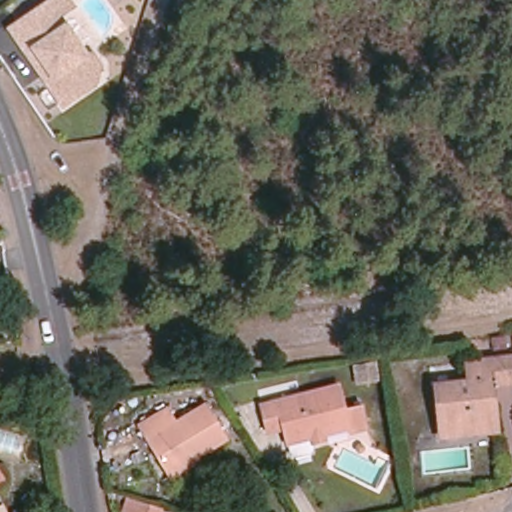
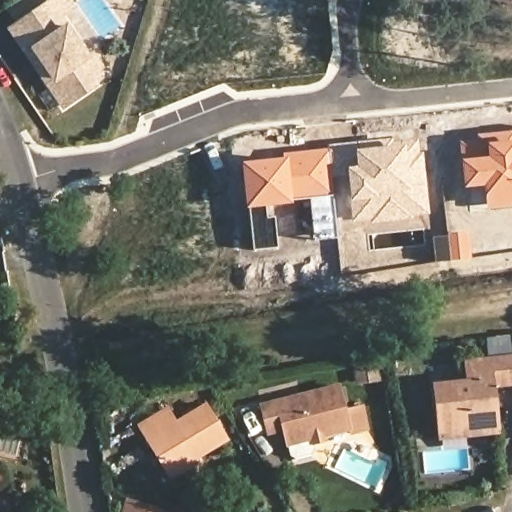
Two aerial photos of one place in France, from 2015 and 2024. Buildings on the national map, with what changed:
unchanged [(94,83),(63,105),(46,81),(26,52),(9,28),(48,1),(49,0),(69,0),(73,5),(58,15),(85,54),(90,51),(100,66),(94,83)]
new [(487,205),(471,208),(469,187),(463,188),(460,159),(460,140),(476,137),(476,132),(512,130),(512,208),(487,210),(487,205)]
new [(413,215),(413,218),(371,223),(370,220),(353,222),(350,201),(348,176),(331,177),(337,237),(314,240),(310,198),(293,199),(293,203),(266,206),(267,216),(275,215),(278,247),(254,249),(250,208),(246,208),(241,162),(283,157),(283,152),(328,148),(328,145),(392,137),(393,141),(417,139),(419,152),(424,152),(430,214),(413,215)]
unchanged [(457,429),(441,431),(436,385),(469,381),(467,361),(488,358),(512,356),(512,385),(491,387),(496,431),(457,436),(457,429)]
unchanged [(288,445),(284,429),(269,433),(262,405),(339,385),(351,429),(288,445)]
unchanged [(139,425),(168,409),(176,422),(206,404),(227,439),(197,457),(195,453),(166,470),(139,425)]
unchanged [(4,479),(0,481),(0,471),(4,479)]
unchanged [(161,512),(132,512),(136,500),(154,505),(155,506),(156,506),(162,508),(161,512)]

